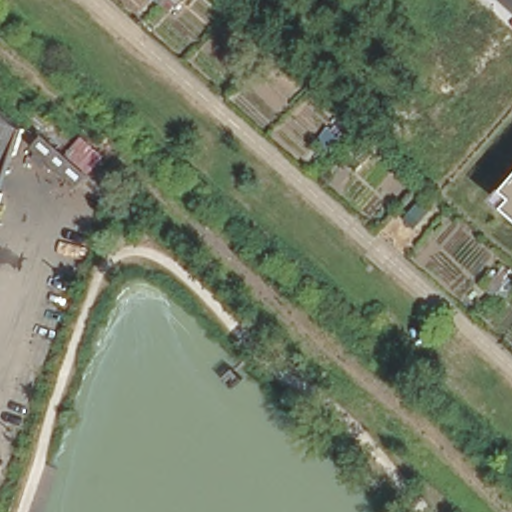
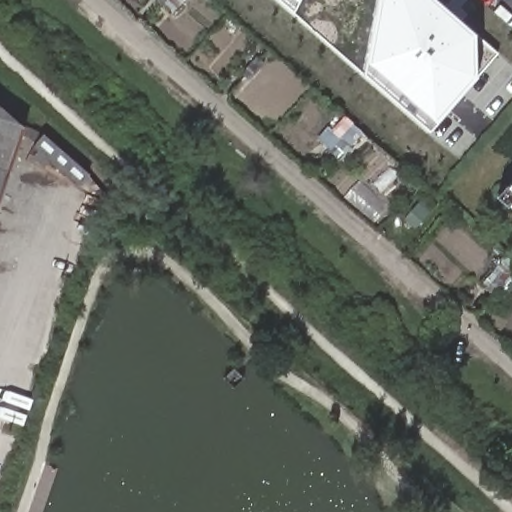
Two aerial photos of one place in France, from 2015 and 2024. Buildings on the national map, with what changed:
unchanged [(153,0),(186,0),(171,16),(153,0)]
new [(496,51),(476,76),(428,130),(363,73),(292,10),(280,0),(436,0),(475,35),(496,51)]
unchanged [(0,173),(0,114),(13,125),(0,173)]
new [(350,147),(353,149),(342,163),(315,139),(328,125),(331,127),(342,114),(363,132),(350,147)]
unchanged [(76,186),(32,147),(44,133),(89,172),(76,186)]
unchanged [(500,197),(512,183),(512,208),(500,197)]
unchanged [(415,227),(401,215),(424,191),(438,204),(415,227)]
unchanged [(496,299),(478,283),(490,268),(496,273),(504,262),(512,269),(512,281),(496,299)]

